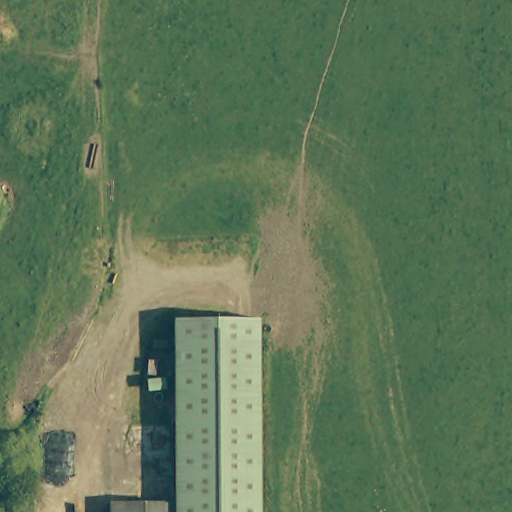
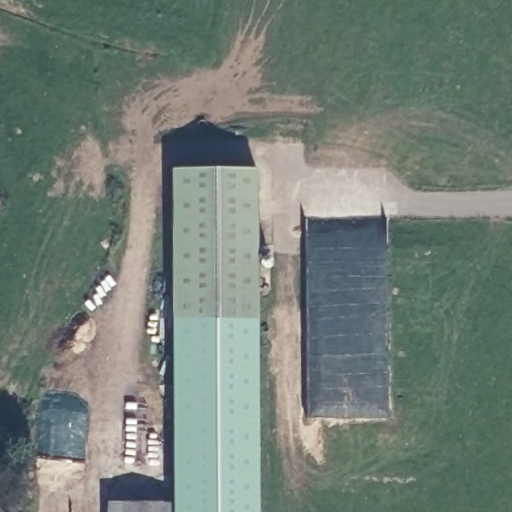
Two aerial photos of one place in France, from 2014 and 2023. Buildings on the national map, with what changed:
new [(257,315),(174,312),(171,170),(255,167),(257,315)]
unchanged [(174,312),(257,315),(252,512),(166,512),(167,484),(170,415),(174,312)]
unchanged [(98,500),(163,500),(163,512),(98,512),(98,500)]

